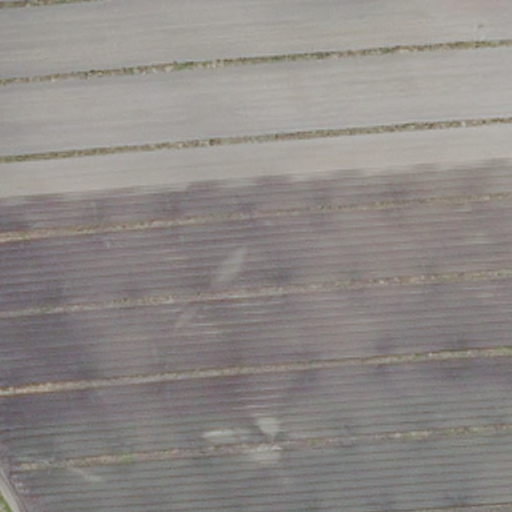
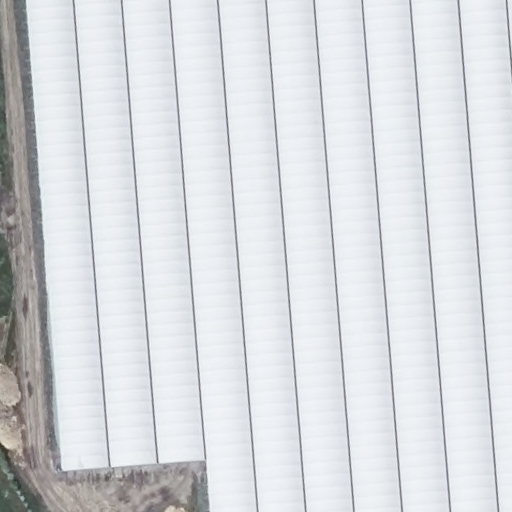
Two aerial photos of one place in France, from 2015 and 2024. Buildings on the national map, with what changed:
new [(207,462),(65,473),(27,0),(512,0),(512,512),(210,512),(207,462)]

